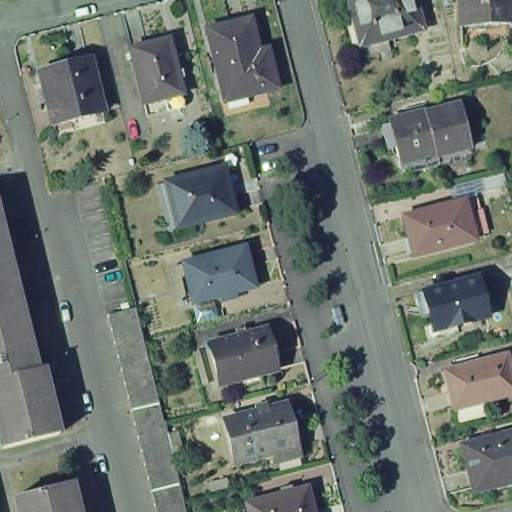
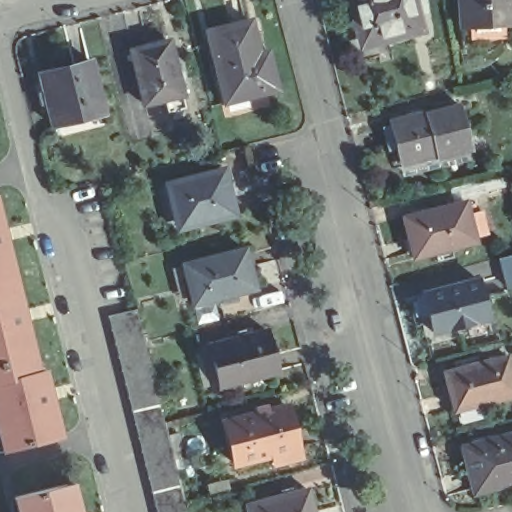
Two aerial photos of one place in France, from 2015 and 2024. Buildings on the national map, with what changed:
unchanged [(344,58),(331,11),(341,7),(340,0),(406,0),(413,27),(377,36),(380,49),(344,58)]
unchanged [(507,26),(456,29),(454,0),(506,0),(507,26)]
unchanged [(220,102),(201,30),(244,19),(253,54),(262,51),(271,89),(220,102)]
unchanged [(159,112),(156,99),(135,104),(121,50),(159,40),(173,94),(176,107),(159,112)]
unchanged [(47,131),(44,120),(29,68),(81,55),(94,108),(93,108),(96,119),(47,131)]
unchanged [(402,116),(402,117),(449,105),(462,150),(426,159),(424,154),(389,163),(379,122),(402,116)]
unchanged [(169,234),(158,185),(167,184),(225,169),(236,214),(198,224),(198,227),(169,234)]
unchanged [(409,258),(399,218),(459,202),(470,242),(409,258)]
unchanged [(0,276),(0,234),(9,274),(0,276)]
unchanged [(251,289),(188,304),(178,264),(241,248),(251,289)]
unchanged [(29,354),(0,361),(0,276),(9,274),(29,354)]
unchanged [(418,294),(472,280),(482,319),(428,333),(418,294)]
unchanged [(158,427),(169,471),(180,512),(150,512),(103,321),(131,314),(138,347),(158,427)]
unchanged [(257,329),(268,372),(209,387),(198,344),(257,329)]
unchanged [(33,371),(38,369),(55,436),(0,449),(0,361),(29,354),(33,371)]
unchanged [(434,373),(497,356),(507,395),(444,411),(434,373)]
unchanged [(273,464),(270,453),(231,464),(219,421),(281,405),(292,448),(295,458),(273,464)]
unchanged [(458,447),(512,433),(512,480),(469,492),(458,447)]
unchanged [(66,483),(74,512),(13,512),(9,497),(66,483)]
unchanged [(298,488),(304,512),(239,512),(236,504),(298,488)]

